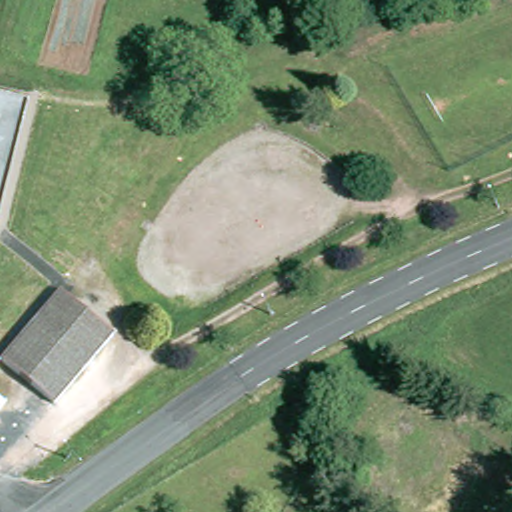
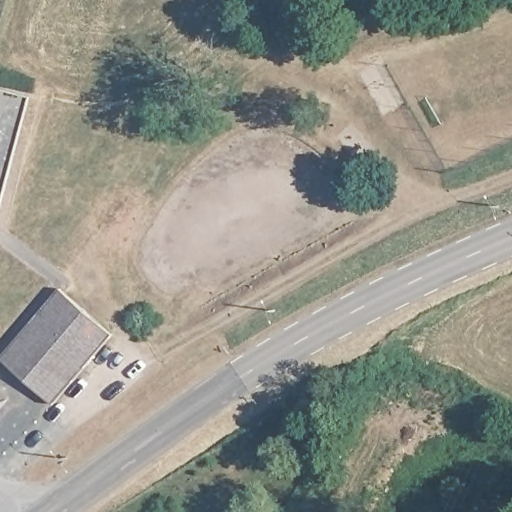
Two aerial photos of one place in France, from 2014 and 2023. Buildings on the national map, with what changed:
unchanged [(56,403),(2,357),(60,288),(115,334),(56,403)]
unchanged [(0,411),(0,396),(7,402),(0,411)]

